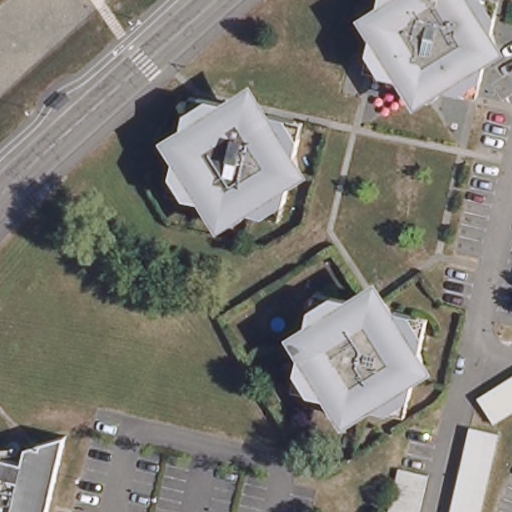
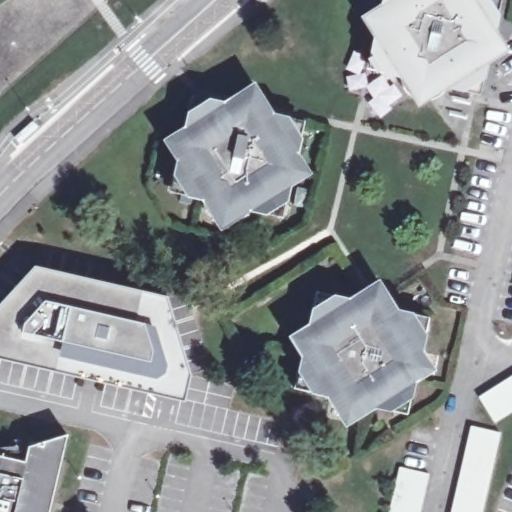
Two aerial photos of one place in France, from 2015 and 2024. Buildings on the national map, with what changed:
unchanged [(429,100),(420,99),(411,94),(405,87),(403,78),(377,72),(371,71),(374,55),(386,0),(502,0),(499,14),(495,30),(498,37),(498,47),(496,51),(492,58),(488,61),(484,78),(480,94),(474,92),(448,87),(442,94),(435,98),(429,100)]
unchanged [(233,225),(225,227),(216,225),(209,221),(205,216),(203,206),(204,199),(180,194),(169,191),(172,177),(177,159),(175,157),(173,150),(173,142),(177,134),(184,129),(188,112),(192,95),(200,97),(226,102),(224,109),(237,112),(238,107),(241,104),(245,102),(250,104),(254,107),(255,112),(253,116),(267,118),(268,111),(296,117),(305,119),(301,135),(297,153),(299,157),(299,170),(296,178),(291,183),(287,202),(283,217),(275,216),(245,209),(244,212),(240,220),(233,225)]
new [(0,357),(0,304),(36,266),(166,296),(190,372),(183,400),(0,357)]
unchanged [(345,415),(337,412),(331,405),(329,400),(328,394),(307,388),(291,385),(295,367),(299,351),(296,345),(296,335),(300,327),(306,321),(310,303),(314,287),(330,291),(353,297),(357,294),(364,292),(374,292),(378,294),(384,298),(390,306),(412,311),(427,315),(424,331),(419,349),(422,355),(422,366),(417,376),(412,380),(408,396),(404,413),(390,410),(365,403),(361,410),(352,414),(345,415)]
unchanged [(512,383),(512,418),(499,427),(483,402),(512,383)]
unchanged [(504,436),(485,512),(455,512),(475,429),(504,436)]
unchanged [(22,461),(25,445),(33,447),(34,442),(64,433),(46,512),(0,512),(0,456),(22,461)]
unchanged [(427,476),(418,512),(390,512),(400,470),(427,476)]

